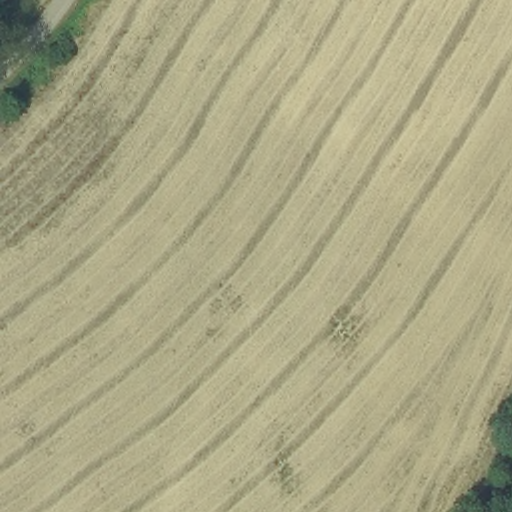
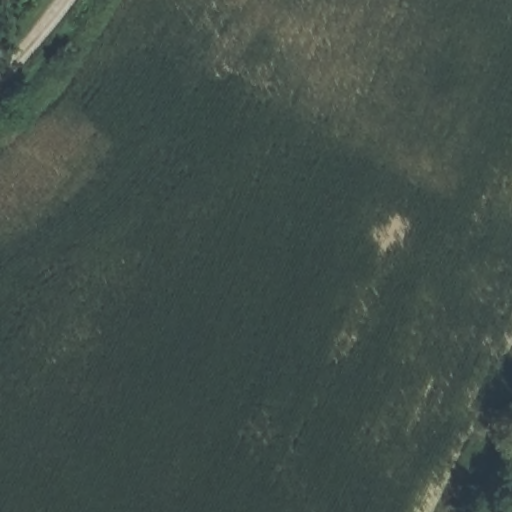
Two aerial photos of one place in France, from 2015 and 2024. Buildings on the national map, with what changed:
unchanged [(14,0),(0,14),(0,0),(14,0)]

